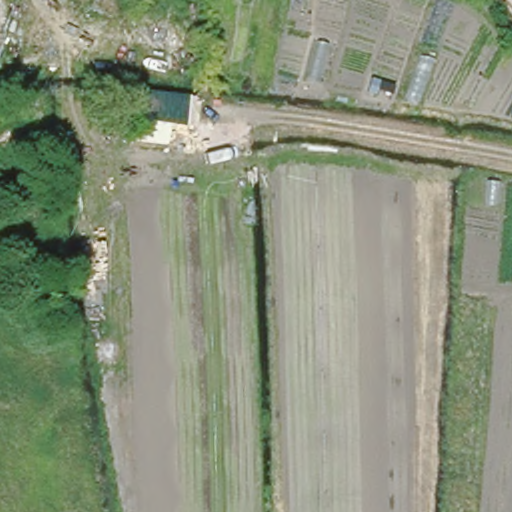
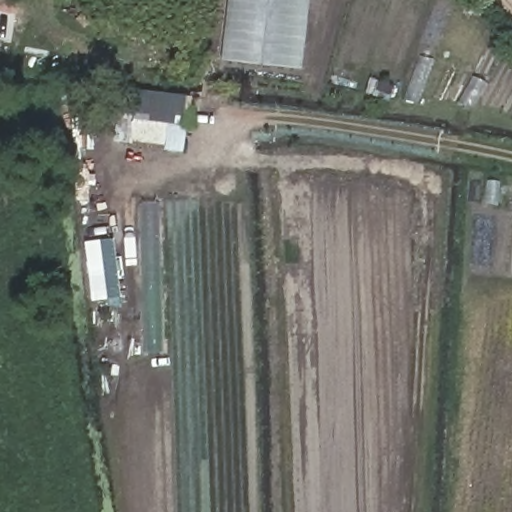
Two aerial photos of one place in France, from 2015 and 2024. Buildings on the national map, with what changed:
new [(228,0),(309,0),(301,68),(221,60),(228,0)]
unchanged [(133,145),(137,93),(186,97),(184,136),(156,134),(155,146),(133,145)]
new [(121,299),(93,302),(86,243),(114,239),(121,299)]

